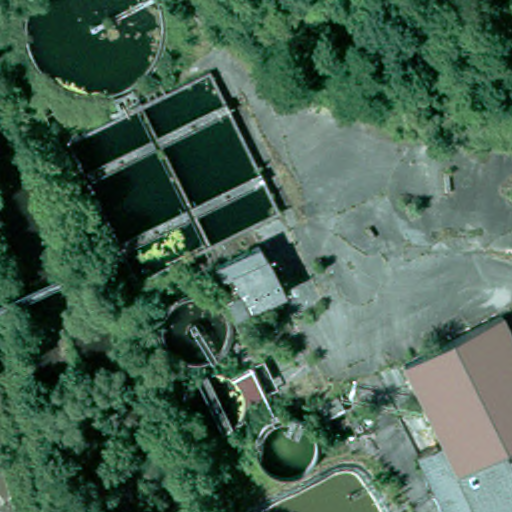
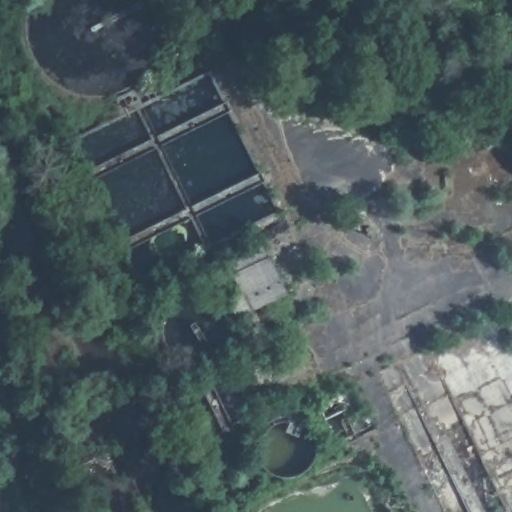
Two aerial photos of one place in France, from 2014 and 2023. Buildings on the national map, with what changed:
demolished [(264,301),(277,327),(249,341),(236,315),(233,316),(216,281),(222,278),(216,266),(259,245),(265,257),(266,256),(283,292),(264,301)]
demolished [(417,453),(436,444),(438,447),(444,444),(404,363),(504,315),(512,331),(512,512),(445,512),(417,453)]
unchanged [(337,396),(344,410),(324,420),(317,406),(337,396)]

